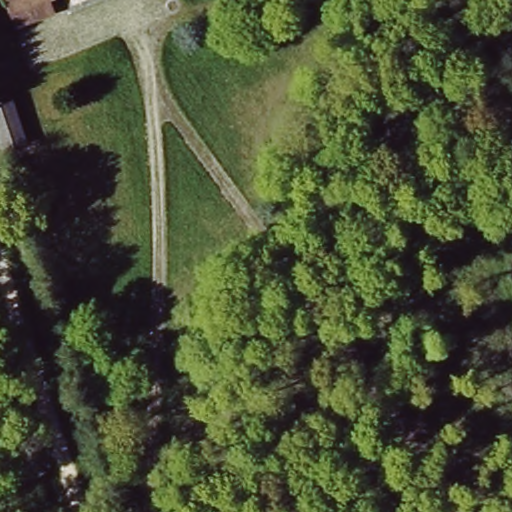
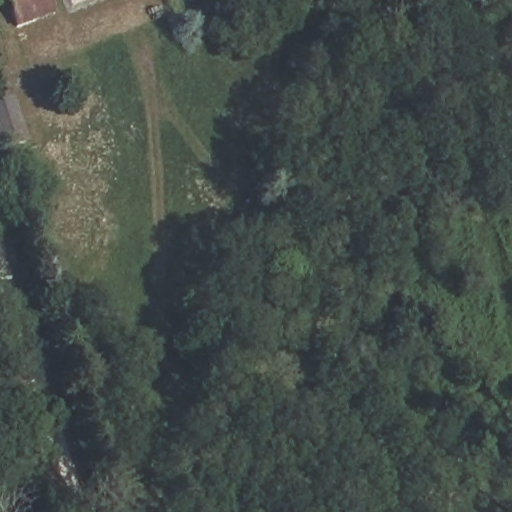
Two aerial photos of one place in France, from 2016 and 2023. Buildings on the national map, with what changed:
unchanged [(8,0),(58,0),(15,15),(8,0)]
unchanged [(1,9),(0,10),(0,4),(1,9)]

